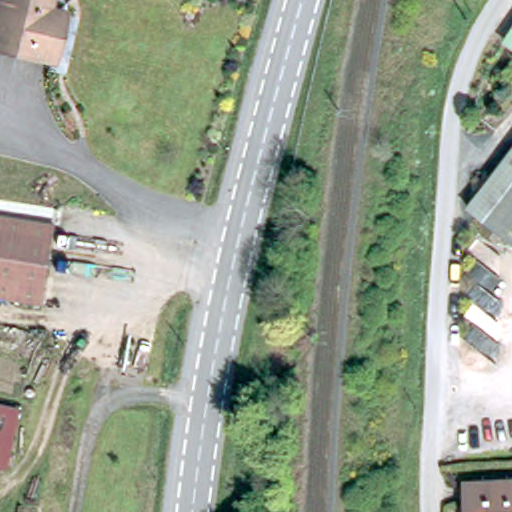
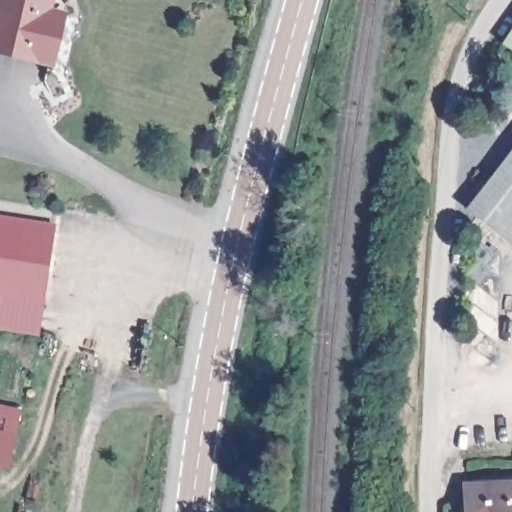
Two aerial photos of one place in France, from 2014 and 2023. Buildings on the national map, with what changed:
unchanged [(59,12),(50,60),(0,49),(0,10),(2,0),(44,0),(42,9),(59,12)]
unchanged [(467,204),(512,146),(512,236),(467,204)]
unchanged [(52,271),(0,263),(0,219),(58,229),(52,271)]
unchanged [(0,295),(0,263),(52,271),(48,302),(0,295)]
new [(42,334),(0,328),(0,295),(48,302),(42,334)]
unchanged [(0,462),(0,416),(12,418),(3,462),(0,462)]
unchanged [(475,512),(474,484),(512,484),(512,512),(475,512)]

